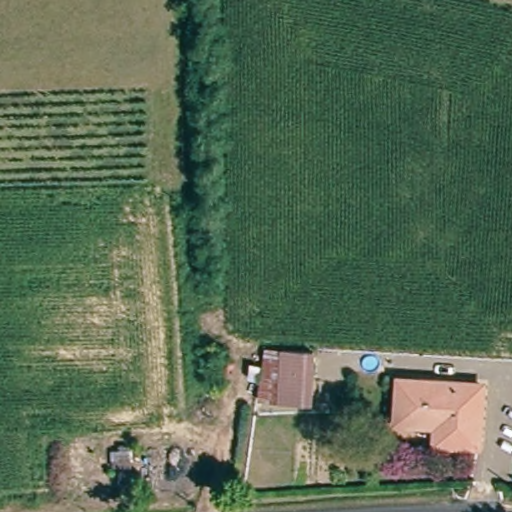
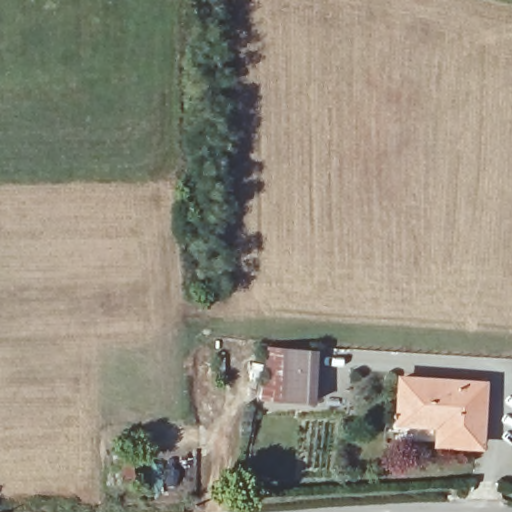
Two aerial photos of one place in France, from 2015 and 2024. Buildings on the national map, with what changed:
unchanged [(306,347),(301,399),(267,396),(271,344),(306,347)]
unchanged [(485,378),(480,442),(437,438),(437,419),(397,414),(401,373),(485,378)]

